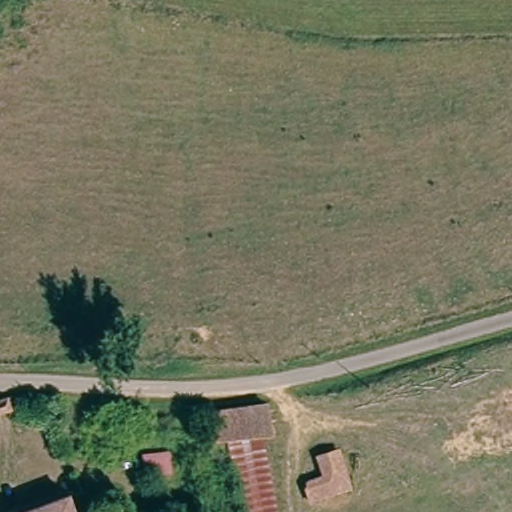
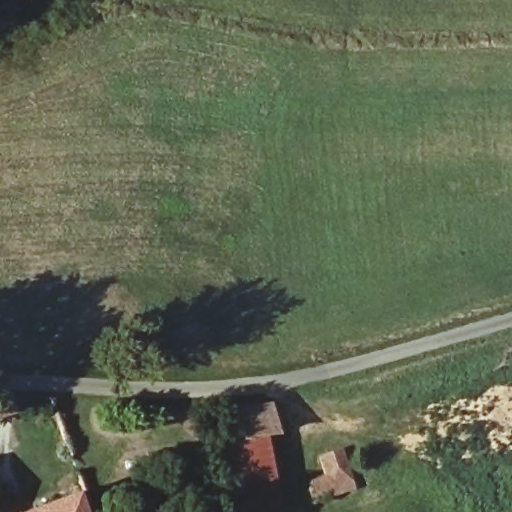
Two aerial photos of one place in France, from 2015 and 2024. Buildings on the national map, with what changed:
unchanged [(0,404),(11,401),(15,414),(0,417),(0,404)]
unchanged [(241,505),(235,470),(222,471),(214,409),(262,403),(280,498),(284,512),(242,512),(241,505)]
unchanged [(354,493),(313,508),(309,494),(327,487),(322,461),(342,456),(354,493)]
unchanged [(67,501),(70,512),(34,512),(67,501)]

